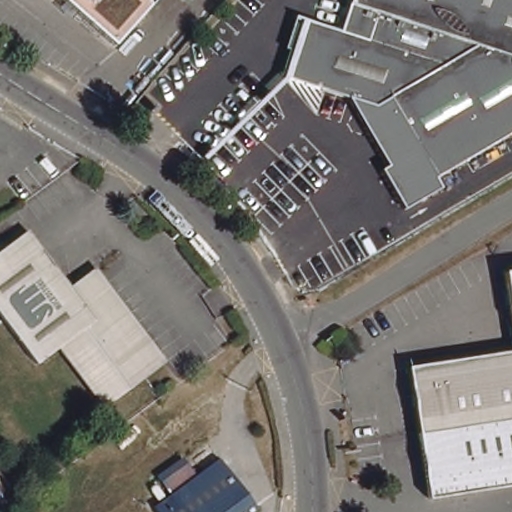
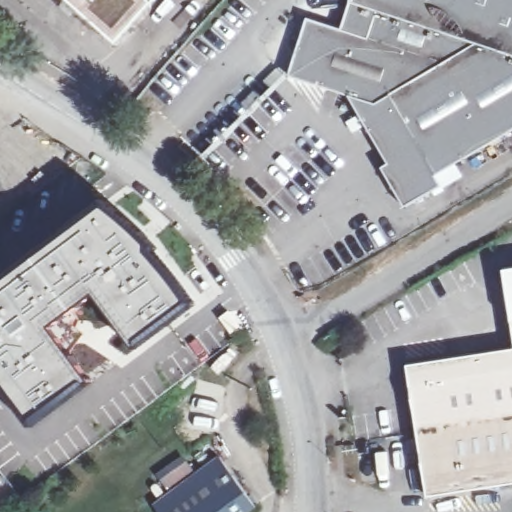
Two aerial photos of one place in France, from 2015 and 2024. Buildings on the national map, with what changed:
unchanged [(151,7),(116,47),(64,0),(143,0),(151,7)]
unchanged [(155,6),(149,0),(161,0),(155,6)]
unchanged [(190,0),(195,0),(192,2),(190,0)]
unchanged [(512,139),(442,180),(413,131),(400,139),(382,110),(381,111),(293,80),(313,22),(346,34),(357,0),(512,0),(512,139)]
new [(444,186),(405,209),(382,169),(388,165),(350,100),(381,111),(382,110),(400,139),(413,131),(442,180),(444,186)]
new [(137,349),(96,295),(50,328),(90,382),(36,420),(0,372),(0,287),(105,210),(148,247),(151,257),(192,307),(137,349)]
demolished [(95,272),(164,364),(106,408),(60,347),(38,364),(0,313),(0,255),(28,234),(71,292),(95,272)]
unchanged [(512,273),(512,325),(504,274),(512,273)]
unchanged [(407,369),(512,354),(512,488),(428,502),(407,369)]
unchanged [(260,512),(160,512),(159,511),(164,507),(152,490),(188,463),(200,480),(225,462),(261,511),(260,512)]

